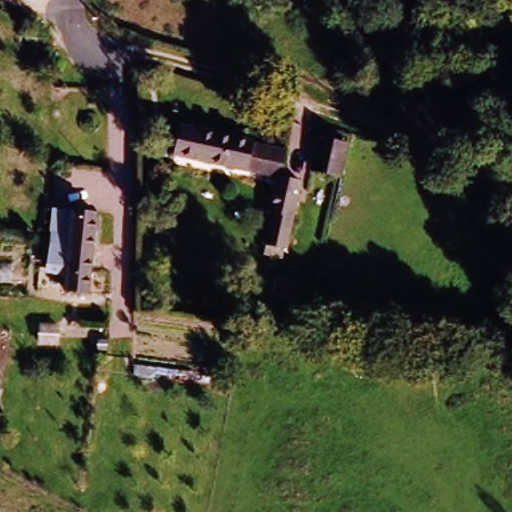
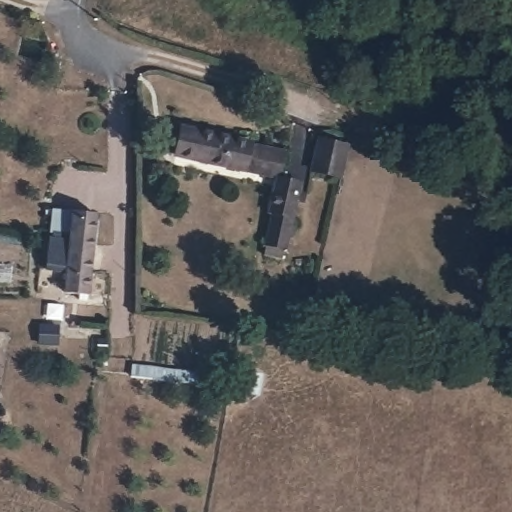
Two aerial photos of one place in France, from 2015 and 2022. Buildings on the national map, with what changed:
unchanged [(236,174),(176,162),(183,127),(243,139),(236,172),(236,174)]
unchanged [(243,139),(287,147),(281,180),(277,180),(236,172),(243,139)]
unchanged [(350,147),(344,179),(312,172),(319,140),(350,147)]
unchanged [(281,180),(303,184),(289,252),(268,249),(274,218),(269,217),(277,180),(281,180)]
unchanged [(94,272),(92,295),(60,293),(62,274),(45,272),(48,252),(65,253),(70,211),(101,214),(94,272)]

